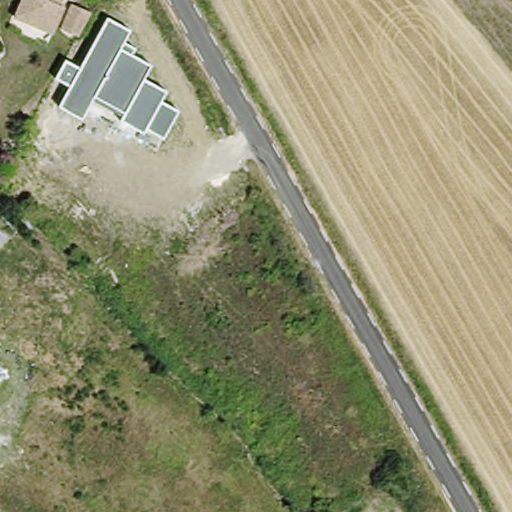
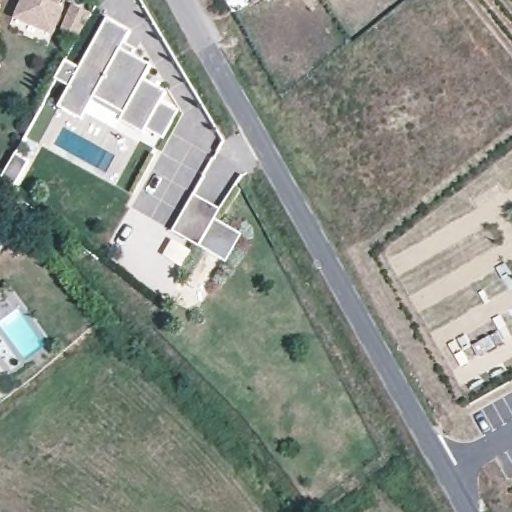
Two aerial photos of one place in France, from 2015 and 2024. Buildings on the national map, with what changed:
unchanged [(61,11),(51,37),(15,22),(23,0),(60,0),(55,9),(61,11)]
unchanged [(92,15),(84,39),(62,30),(70,7),(92,15)]
unchanged [(132,30),(124,42),(136,49),(132,55),(152,65),(144,80),(168,91),(162,102),(179,111),(164,139),(146,130),(143,134),(119,121),(123,114),(93,98),(81,120),(58,107),(70,86),(56,79),(66,60),(80,68),(107,17),(132,30)]
new [(191,195),(219,210),(212,220),(240,236),(227,263),(171,235),(191,195)]

